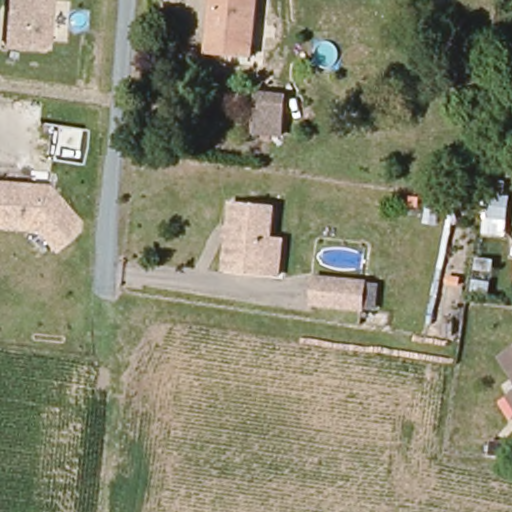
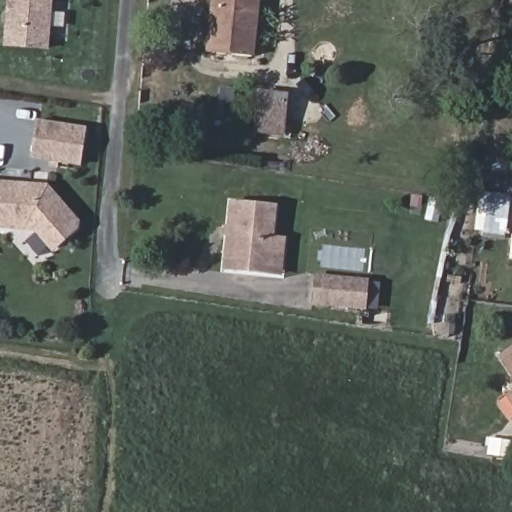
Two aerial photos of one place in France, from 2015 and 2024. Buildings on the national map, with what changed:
unchanged [(6,48),(10,0),(51,0),(47,50),(6,48)]
unchanged [(258,0),(253,58),(211,53),(216,0),(258,0)]
unchanged [(258,134),(261,94),(285,95),(283,135),(258,134)]
new [(81,167),(31,159),(37,119),(89,128),(81,167)]
unchanged [(54,241),(41,228),(36,221),(0,219),(0,177),(31,179),(39,188),(47,180),(68,204),(78,215),(77,220),(54,241)]
unchanged [(281,274),(266,273),(224,269),(229,199),(270,202),(268,242),(283,243),(281,274)]
unchanged [(380,301),(368,300),(368,302),(318,299),(320,275),(370,279),(370,282),(381,282),(380,301)]
unchanged [(500,357),(512,349),(512,377),(500,357)]
unchanged [(506,396),(512,392),(512,404),(506,396)]

